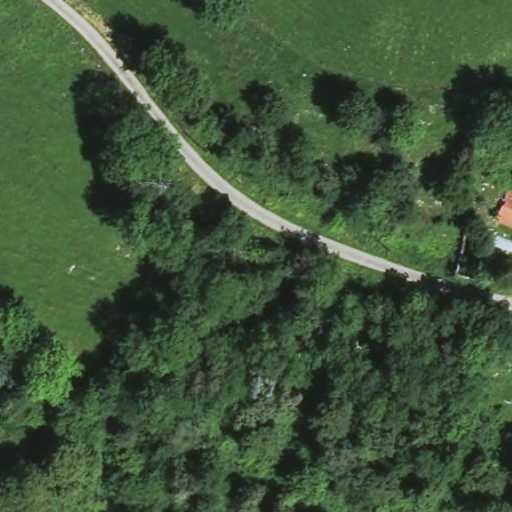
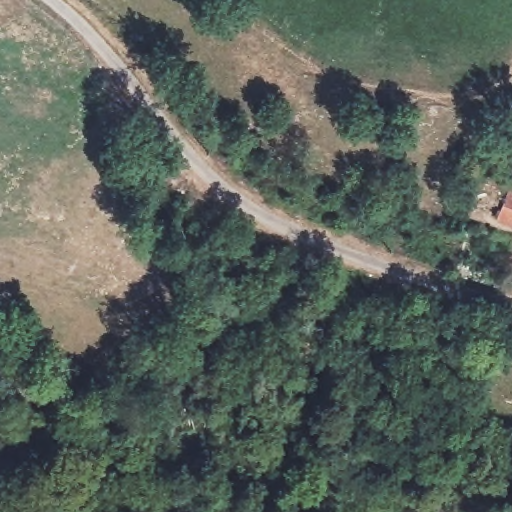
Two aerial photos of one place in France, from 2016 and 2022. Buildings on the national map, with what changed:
unchanged [(497,220),(512,191),(512,226),(497,220)]

